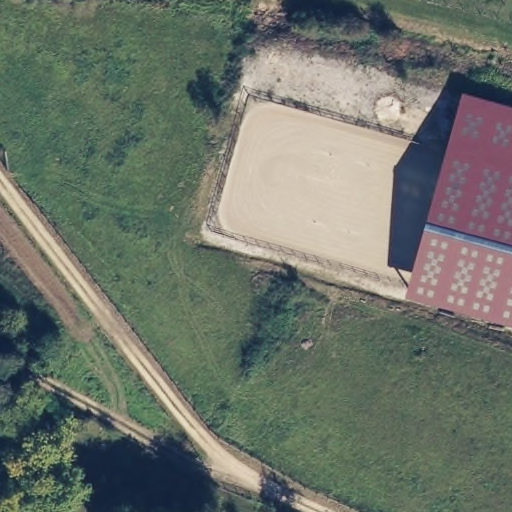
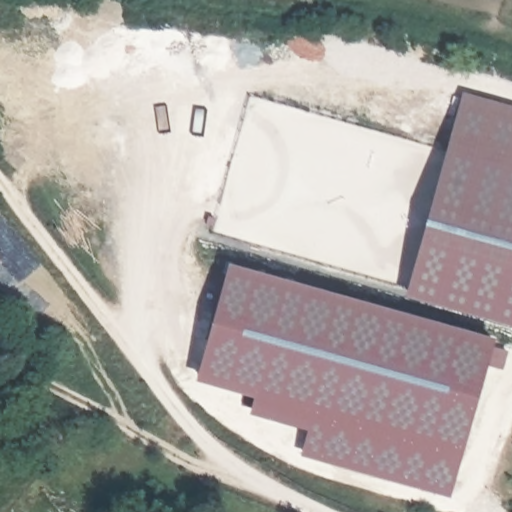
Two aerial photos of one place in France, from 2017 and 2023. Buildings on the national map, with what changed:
unchanged [(405,295),(465,94),(512,107),(512,324),(405,295)]
new [(302,454),(308,428),(250,412),(255,395),(197,378),(230,262),(496,335),(450,496),(302,454)]

